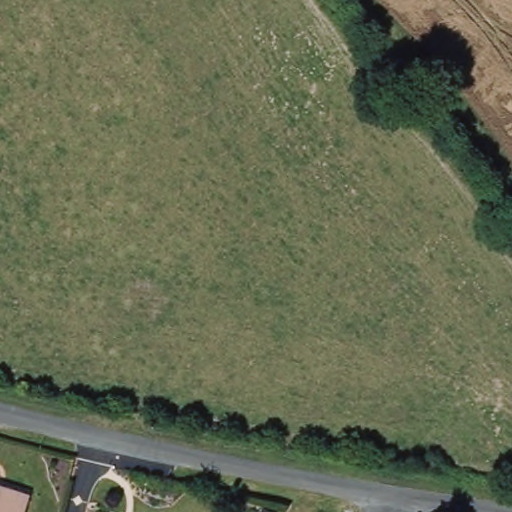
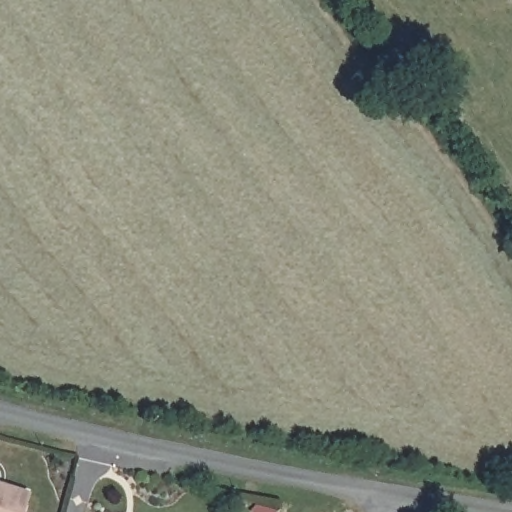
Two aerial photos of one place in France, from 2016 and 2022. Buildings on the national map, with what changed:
unchanged [(19,512),(0,512),(0,482),(26,491),(19,512)]

